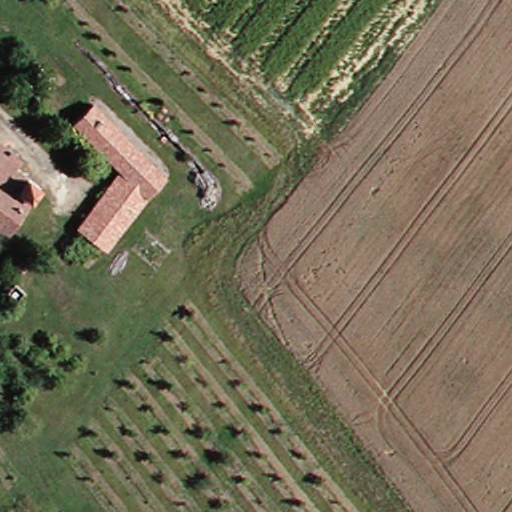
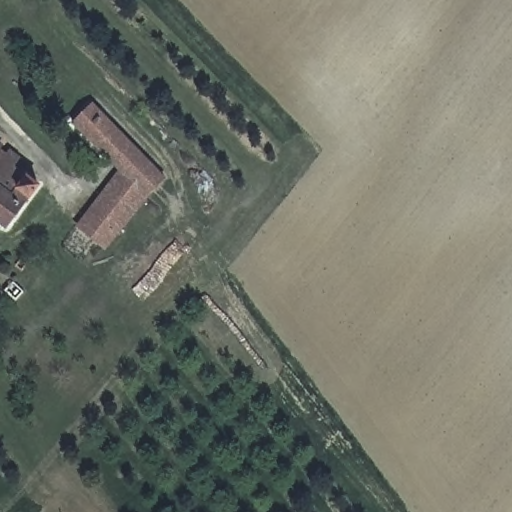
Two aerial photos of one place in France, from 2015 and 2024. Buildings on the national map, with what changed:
unchanged [(68,123),(91,104),(119,135),(95,156),(68,123)]
unchanged [(119,135),(156,185),(135,204),(110,175),(95,156),(119,135)]
unchanged [(7,174),(30,193),(0,228),(0,155),(2,156),(12,165),(7,174)]
unchanged [(135,204),(113,235),(100,227),(84,253),(66,242),(110,175),(135,204)]

